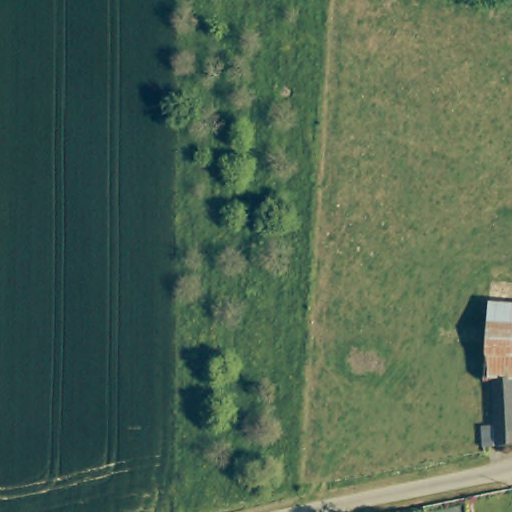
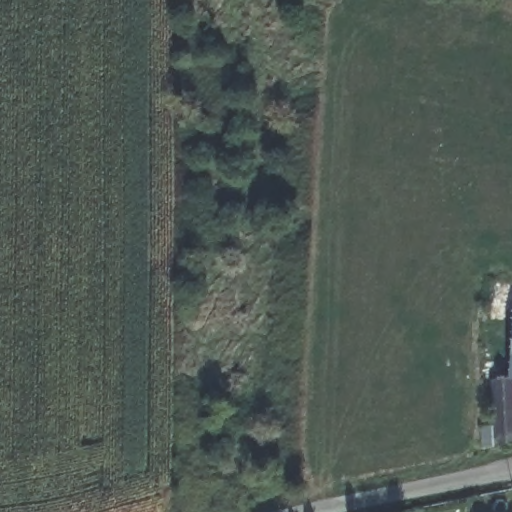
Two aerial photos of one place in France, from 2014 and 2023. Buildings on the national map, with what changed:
new [(507,354),(484,352),(489,300),(512,302),(512,378),(505,377),(507,354)]
demolished [(488,381),(493,303),(512,305),(512,382),(498,381),(488,381)]
unchanged [(485,427),(499,426),(498,381),(512,382),(512,446),(484,449),(485,427)]

